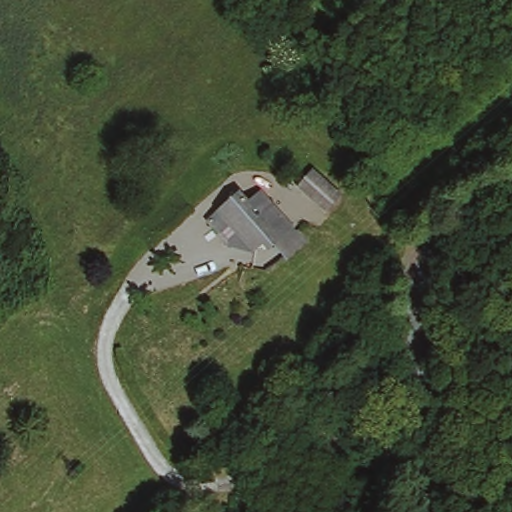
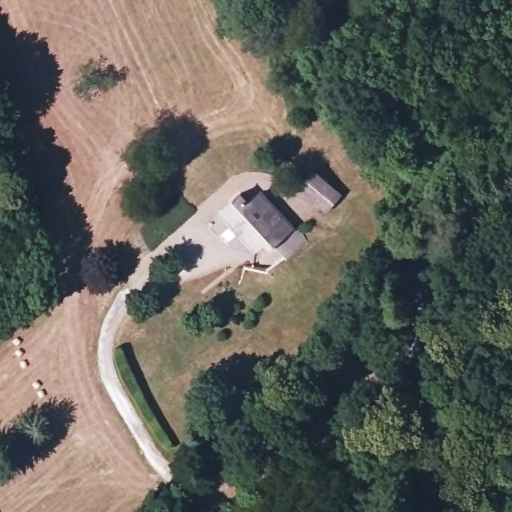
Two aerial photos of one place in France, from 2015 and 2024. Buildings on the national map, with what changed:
unchanged [(313,167),(344,196),(324,214),(298,187),(313,167)]
unchanged [(243,191),(253,203),(268,190),(306,237),(287,257),(268,242),(255,253),(231,228),(221,239),(208,222),(243,191)]

